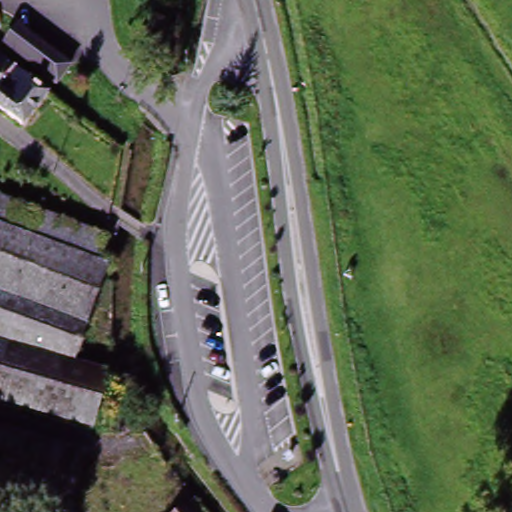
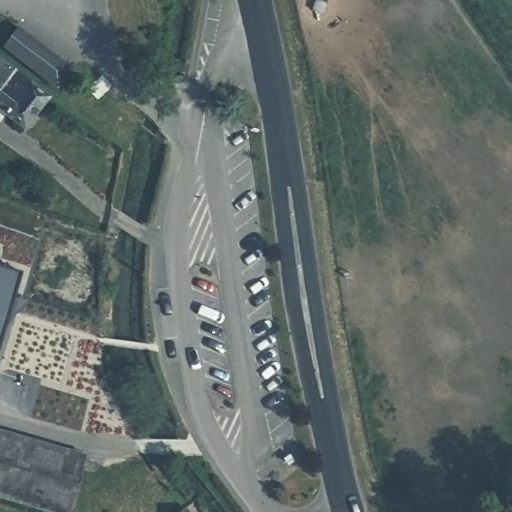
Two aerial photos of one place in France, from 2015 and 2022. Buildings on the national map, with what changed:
unchanged [(70,72),(57,89),(3,50),(15,32),(70,72)]
unchanged [(50,99),(26,132),(21,129),(0,114),(0,66),(8,71),(50,99)]
demolished [(0,265),(96,300),(85,329),(0,298),(0,265)]
new [(0,341),(0,266),(20,272),(0,341)]
demolished [(71,368),(0,347),(0,298),(85,329),(71,368)]
unchanged [(0,435),(88,461),(73,512),(38,512),(0,500),(0,435)]
unchanged [(185,512),(182,512),(184,511),(185,512)]

